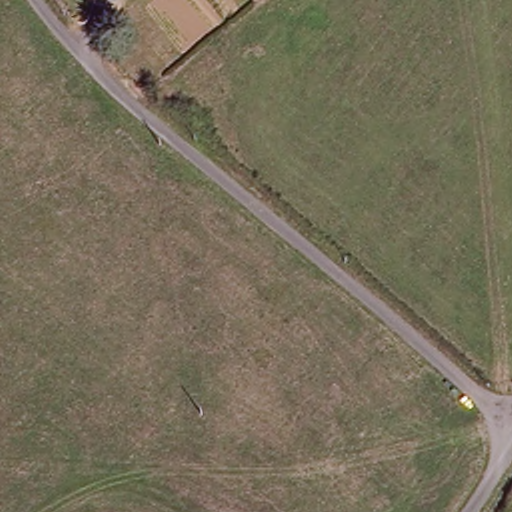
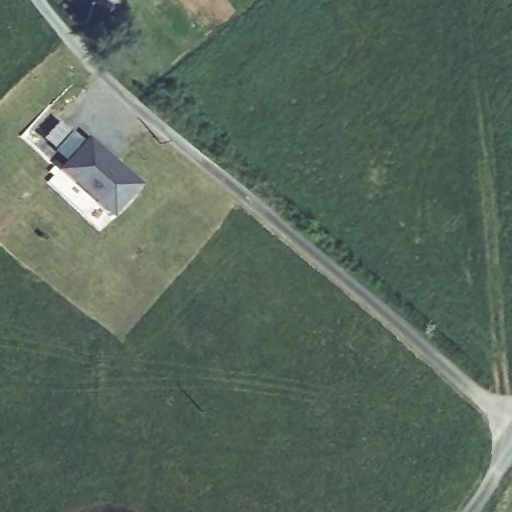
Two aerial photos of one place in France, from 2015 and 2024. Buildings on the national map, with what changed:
new [(62,168),(87,139),(116,165),(119,161),(142,182),(114,214),(97,199),(86,211),(67,194),(78,182),(62,168)]

